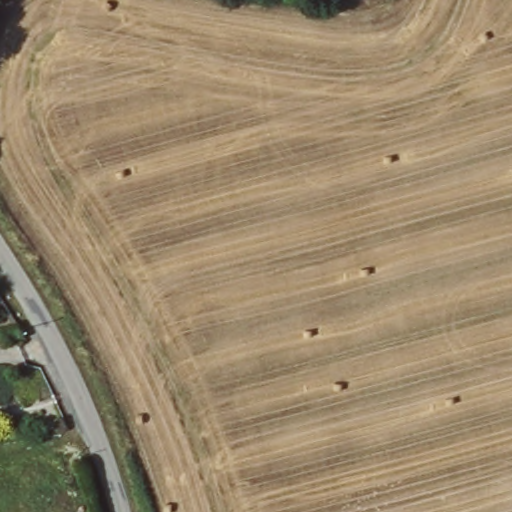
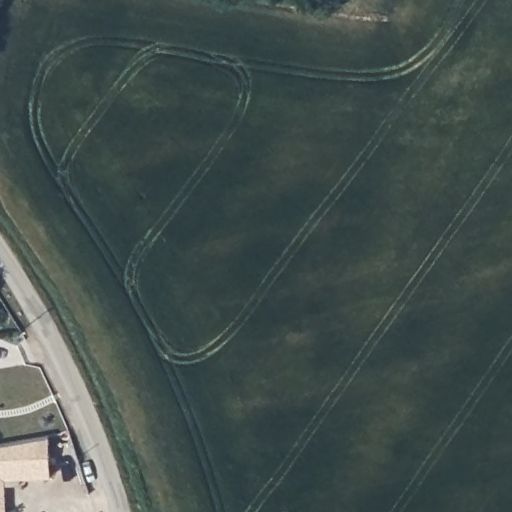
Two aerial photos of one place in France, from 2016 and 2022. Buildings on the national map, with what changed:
new [(0,444),(49,436),(50,477),(20,478),(20,484),(5,485),(6,512),(0,512),(0,444)]

